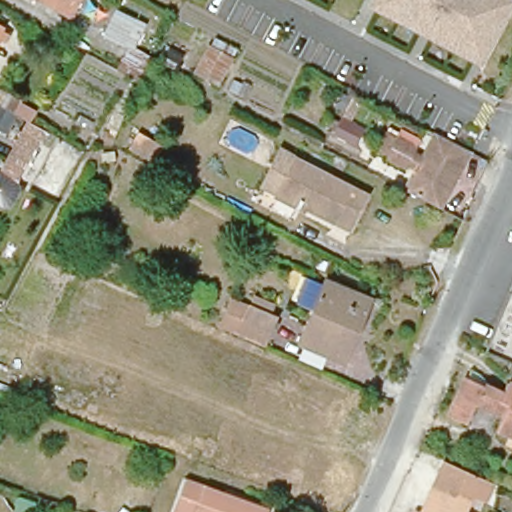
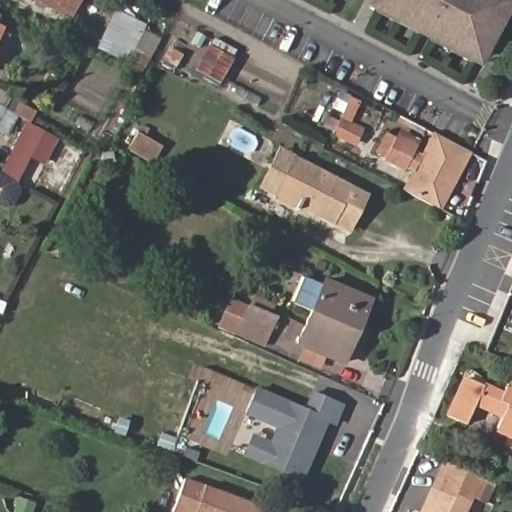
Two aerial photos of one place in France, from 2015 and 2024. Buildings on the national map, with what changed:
unchanged [(68,19),(33,0),(77,0),(68,19)]
unchanged [(363,7),(367,0),(512,0),(512,5),(477,69),(363,7)]
unchanged [(121,13),(146,27),(134,50),(107,37),(121,13)]
unchanged [(3,35),(0,39),(0,33),(3,35)]
unchanged [(197,62),(210,37),(226,45),(235,50),(227,66),(222,77),(197,62)]
unchanged [(164,65),(176,46),(195,58),(183,76),(164,65)]
unchanged [(3,93),(15,100),(13,104),(36,116),(32,124),(0,107),(0,99),(3,93)]
unchanged [(161,157),(134,141),(144,125),(170,142),(161,157)]
unchanged [(408,192),(420,170),(413,166),(410,172),(389,162),(400,141),(416,149),(416,157),(426,163),(439,131),(474,150),(457,183),(442,210),(408,192)]
unchanged [(62,152),(44,141),(48,133),(67,142),(62,152)]
unchanged [(15,175),(2,169),(20,135),(32,142),(15,175)]
unchanged [(280,148),(365,192),(345,229),(262,185),(280,148)]
unchanged [(12,180),(17,183),(16,189),(10,201),(0,204),(0,173),(12,180)]
unchanged [(345,365),(300,346),(307,330),(328,280),(373,300),(365,319),(353,347),(345,365)]
unchanged [(219,326),(232,297),(280,318),(268,347),(219,326)]
unchanged [(484,386),(468,425),(451,416),(467,380),(484,386)]
unchanged [(511,386),(512,386),(512,437),(499,431),(511,406),(502,403),(511,386)]
new [(337,426),(328,423),(303,481),(243,455),(252,433),(270,440),(275,428),(245,415),(257,387),(305,407),(313,390),(345,405),(337,426)]
unchanged [(473,497),(467,512),(424,512),(439,481),(473,497)]
unchanged [(176,512),(186,485),(255,512),(176,512)]

